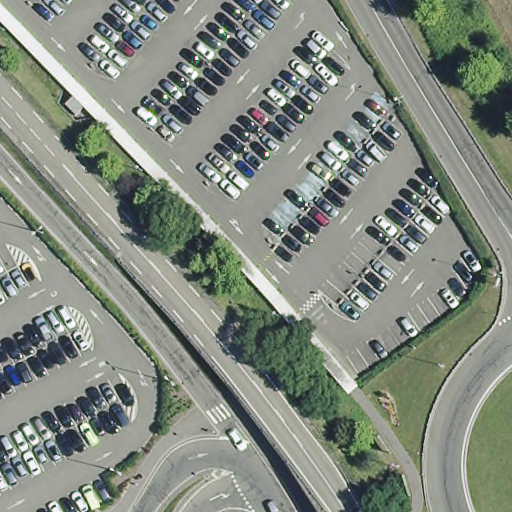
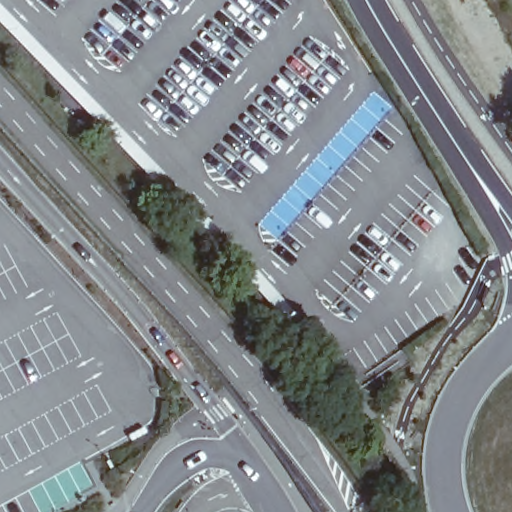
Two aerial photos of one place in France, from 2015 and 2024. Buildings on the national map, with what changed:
unchanged [(226,253),(115,136),(0,24),(0,0),(8,0),(97,86),(180,178),(278,289),(360,384),(349,394),(312,354),(226,253)]
unchanged [(83,109),(75,116),(65,106),(72,99),(83,109)]

